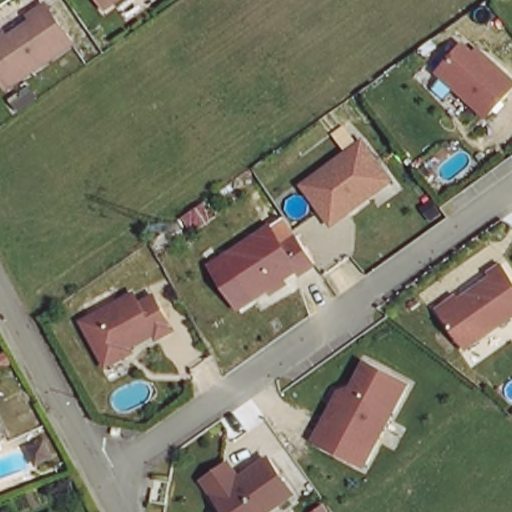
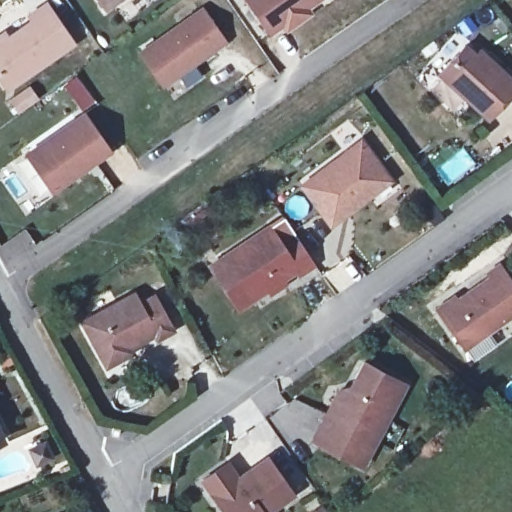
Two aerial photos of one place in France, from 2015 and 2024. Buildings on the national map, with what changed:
unchanged [(119,1),(105,10),(98,0),(121,0),(119,1)]
new [(311,13),(286,31),(283,25),(270,35),(245,0),(319,0),(308,8),(311,13)]
unchanged [(2,39),(9,34),(13,39),(38,21),(35,16),(51,5),(78,44),(12,89),(0,72),(0,40),(2,39)]
new [(137,50),(203,5),(228,40),(162,86),(137,50)]
unchanged [(485,50),(512,75),(512,81),(486,110),(437,65),(462,38),(473,47),(477,43),(485,50)]
new [(113,151),(51,194),(23,152),(84,110),(113,151)]
unchanged [(373,193),(335,221),(307,183),(365,140),(390,173),(394,177),(373,193)]
unchanged [(255,299),(225,250),(268,220),(280,239),(292,230),(315,262),(255,299)]
unchanged [(503,260),(512,274),(512,313),(466,346),(440,310),(437,305),(457,291),(460,295),(491,273),(489,270),(503,260)]
unchanged [(127,351),(109,361),(82,313),(134,285),(142,300),(156,291),(174,325),(159,333),(156,330),(132,343),(134,347),(127,351)]
unchanged [(335,401),(342,388),(354,385),(367,360),(408,381),(365,463),(324,441),(316,437),(335,401)]
unchanged [(5,442),(0,445),(0,432),(5,442)]
unchanged [(231,460),(241,476),(271,455),(295,491),(266,511),(266,512),(230,512),(206,477),(231,460)]

